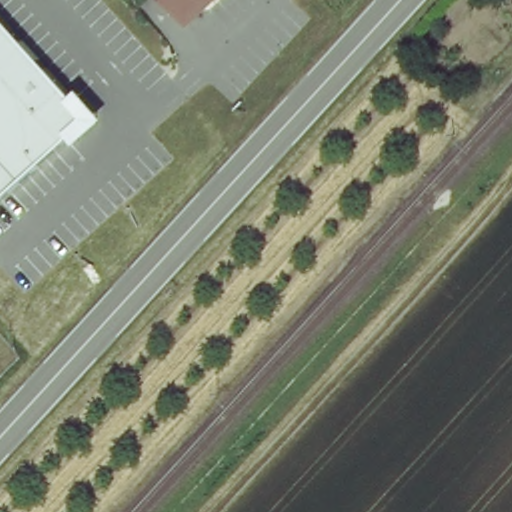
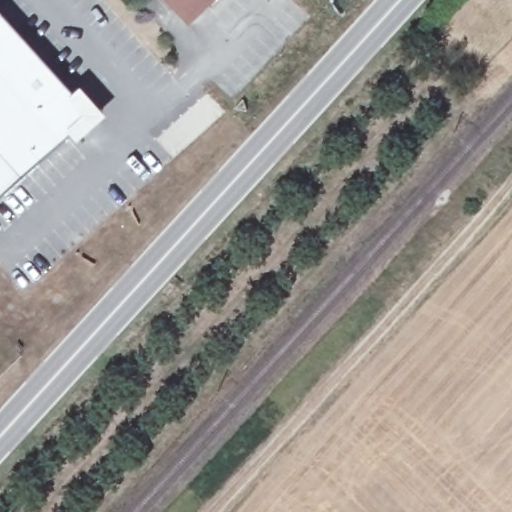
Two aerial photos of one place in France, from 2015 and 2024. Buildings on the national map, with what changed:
unchanged [(211,0),(199,11),(185,25),(171,10),(162,0),(211,0)]
unchanged [(98,122),(80,139),(75,134),(0,200),(0,13),(76,100),(81,96),(98,115),(98,122)]

